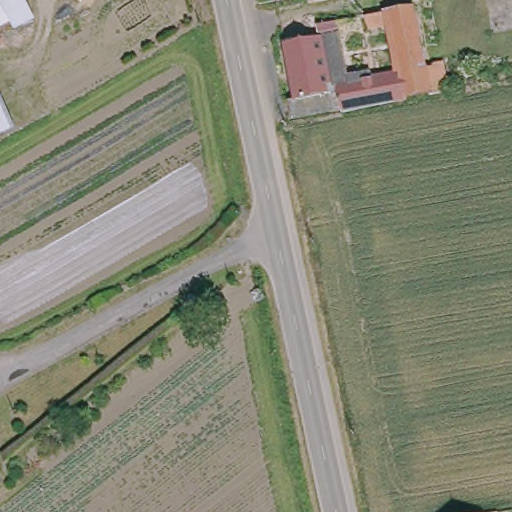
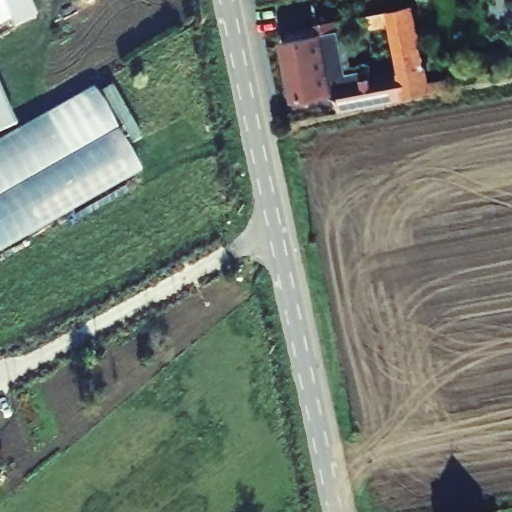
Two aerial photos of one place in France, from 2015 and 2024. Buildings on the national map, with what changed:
unchanged [(15,20),(0,28),(0,0),(5,0),(15,20)]
unchanged [(405,73),(396,25),(373,29),(366,15),(385,12),(397,10),(417,6),(423,45),(427,65),(447,61),(451,90),(433,94),(432,90),(297,117),(292,99),(298,97),(288,45),(322,38),(320,24),(340,20),(342,34),(351,75),(352,83),(405,73)]
new [(0,252),(0,139),(91,87),(142,171),(0,252)]
unchanged [(14,126),(0,132),(0,93),(14,126)]

